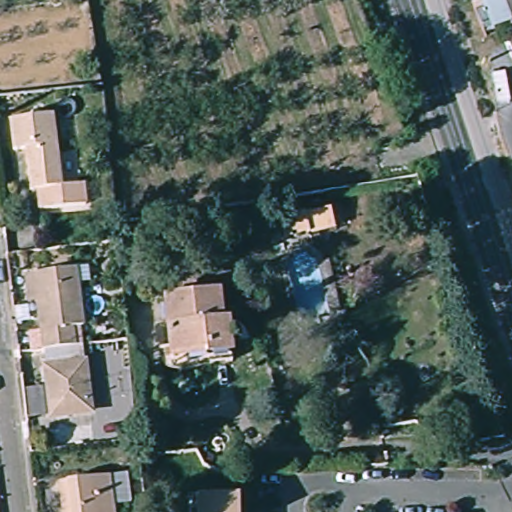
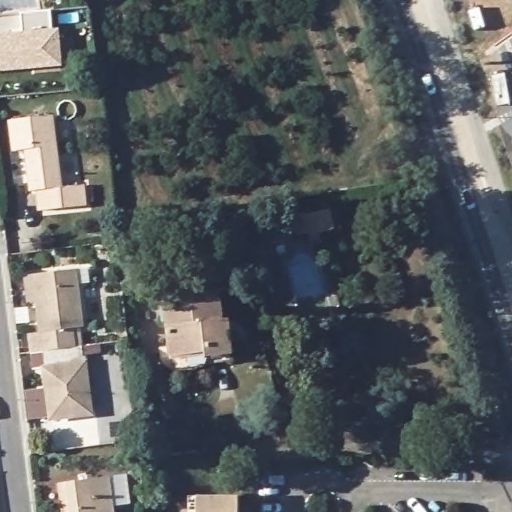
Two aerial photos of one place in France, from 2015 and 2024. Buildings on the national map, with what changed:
new [(63,66),(0,71),(0,34),(23,32),(21,14),(51,11),(53,29),(59,29),(63,66)]
unchanged [(83,184),(86,208),(42,211),(40,191),(32,192),(26,154),(12,154),(10,121),(55,116),(63,187),(83,184)]
unchanged [(25,272),(69,266),(76,325),(62,327),(66,347),(35,351),(25,272)]
unchanged [(220,322),(226,321),(232,362),(206,366),(203,350),(170,356),(162,298),(217,292),(220,322)]
unchanged [(75,346),(85,420),(45,426),(35,351),(66,347),(75,346)]
unchanged [(61,480),(114,472),(118,512),(65,512),(61,480)]
unchanged [(242,497),(242,512),(200,512),(200,497),(242,497)]

